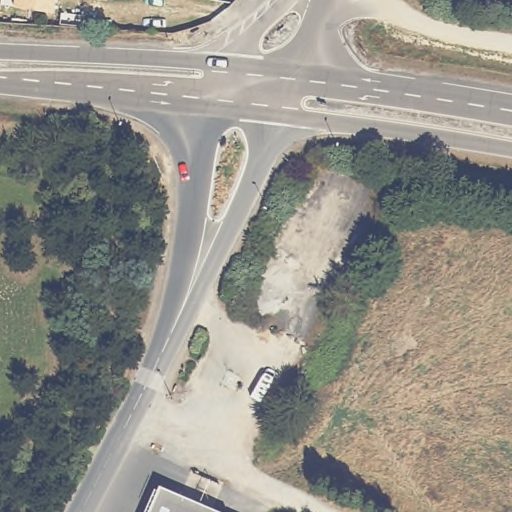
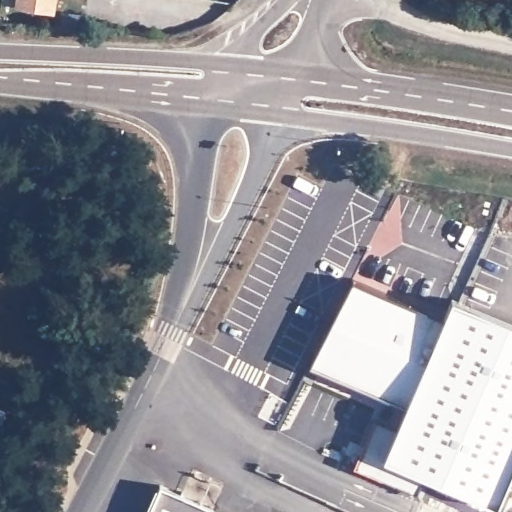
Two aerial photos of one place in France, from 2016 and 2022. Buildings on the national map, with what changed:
unchanged [(13,7),(0,6),(0,0),(13,0),(13,2),(13,7)]
new [(375,417),(396,425),(405,405),(310,364),(353,277),(443,316),(451,297),(512,322),(512,470),(497,506),(423,476),(416,492),(354,466),(375,417)]
unchanged [(160,486),(224,512),(148,512),(160,486)]

